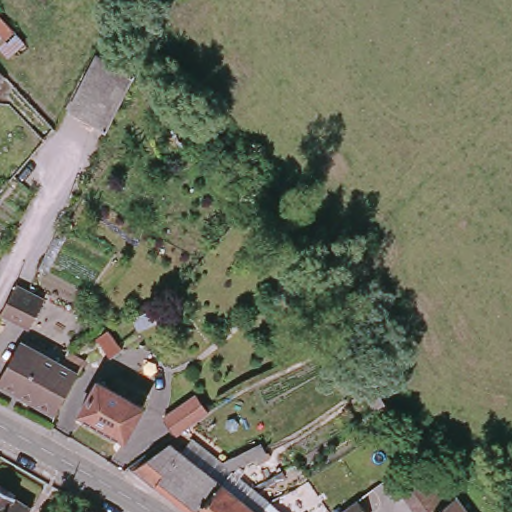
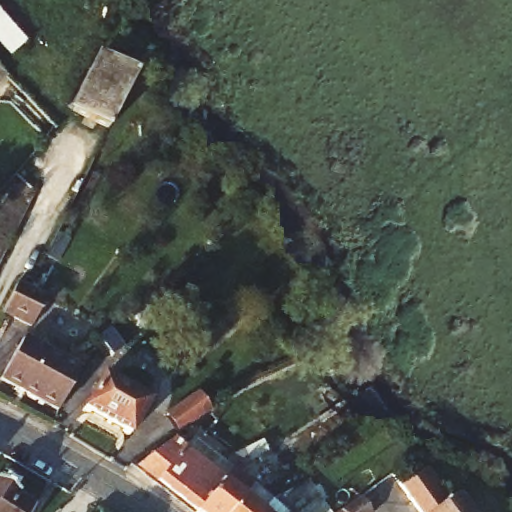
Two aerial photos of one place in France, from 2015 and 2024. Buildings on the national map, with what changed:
unchanged [(0,47),(0,9),(30,39),(10,57),(0,47)]
unchanged [(108,127),(72,108),(99,50),(135,70),(108,127)]
unchanged [(0,67),(7,74),(0,81),(0,67)]
unchanged [(17,281),(28,287),(44,296),(30,323),(2,309),(17,281)]
unchanged [(0,378),(20,341),(54,359),(63,345),(72,351),(64,365),(78,373),(56,412),(0,381),(0,378)]
unchanged [(137,397),(140,391),(147,397),(126,433),(81,407),(100,376),(137,397)]
unchanged [(177,432),(167,417),(195,395),(203,404),(207,410),(177,432)]
unchanged [(192,437),(227,466),(248,454),(249,457),(265,449),(267,453),(268,453),(271,458),(258,466),(255,460),(242,466),(232,471),(198,512),(189,512),(135,469),(172,441),(182,449),(192,437)]
unchanged [(242,466),(245,471),(237,475),(240,478),(251,487),(230,512),(198,512),(232,471),(242,466)]
unchanged [(458,496),(470,512),(417,512),(400,488),(425,470),(449,502),(458,496)]
unchanged [(13,494),(30,505),(26,512),(0,512),(0,481),(15,490),(13,494)]
unchanged [(268,503),(261,512),(230,512),(251,487),(268,503)]
unchanged [(370,502),(377,511),(376,512),(339,512),(363,494),(370,502)]
unchanged [(279,512),(261,512),(268,503),(279,512)]

